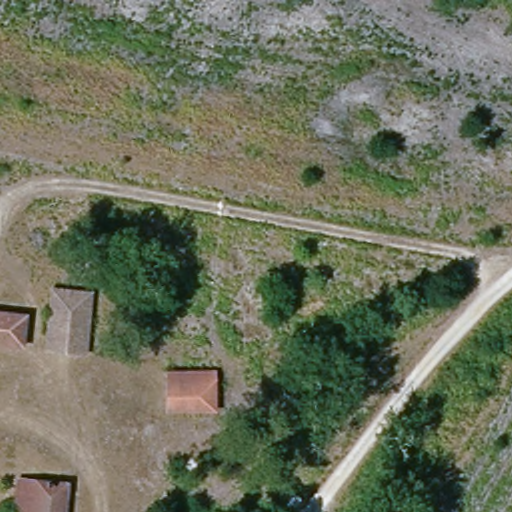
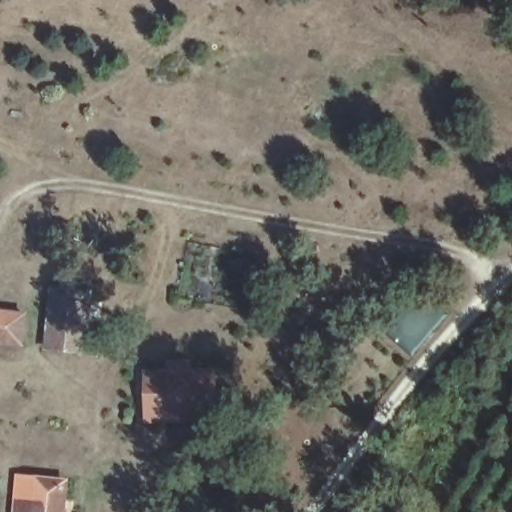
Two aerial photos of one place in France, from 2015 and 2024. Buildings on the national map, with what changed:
unchanged [(51,292),(88,291),(84,350),(49,350),(51,292)]
unchanged [(16,311),(14,347),(0,345),(0,309),(16,311)]
unchanged [(169,370),(209,371),(208,415),(170,416),(169,370)]
unchanged [(24,480),(72,487),(69,512),(22,512),(24,480)]

